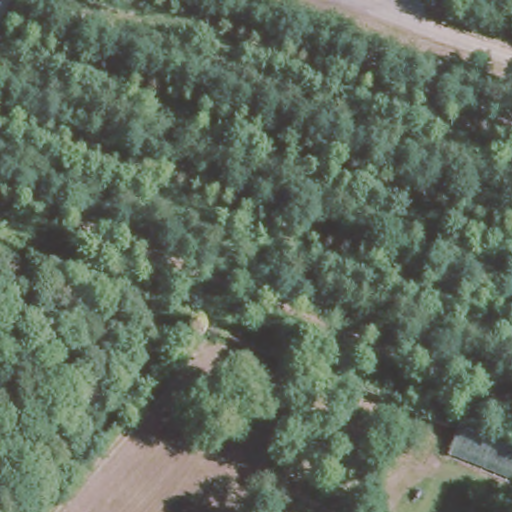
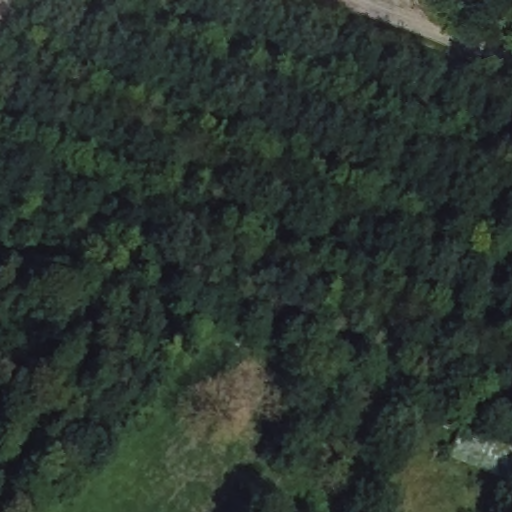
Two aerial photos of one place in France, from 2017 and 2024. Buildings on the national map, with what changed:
unchanged [(512,463),(512,489),(450,465),(458,441),(512,463)]

